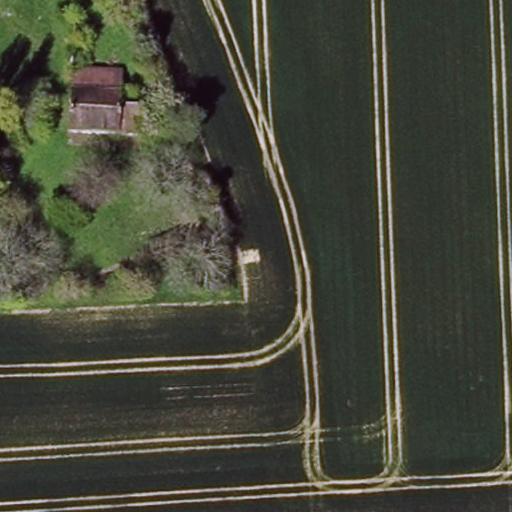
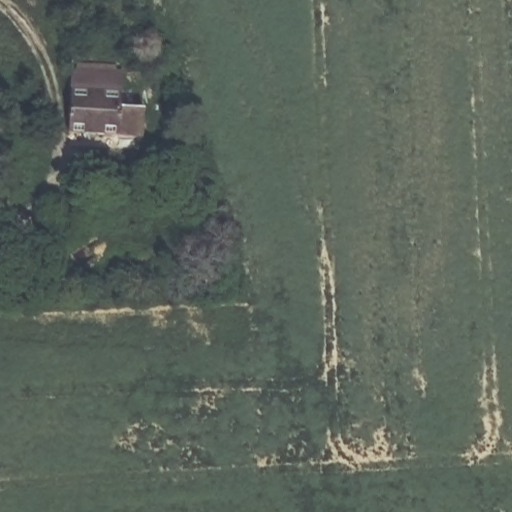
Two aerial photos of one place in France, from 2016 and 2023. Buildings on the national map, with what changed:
unchanged [(123,67),(121,126),(70,124),(72,65),(123,67)]

